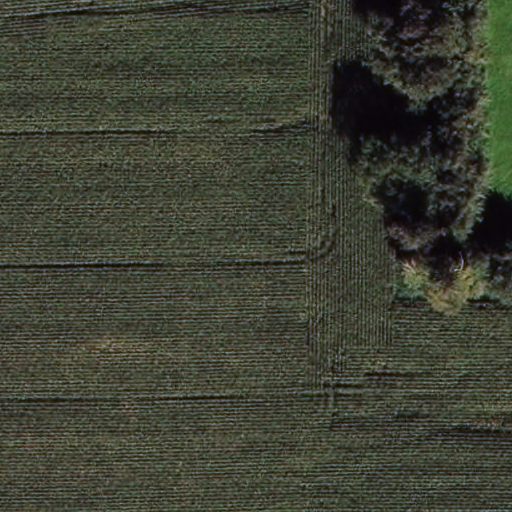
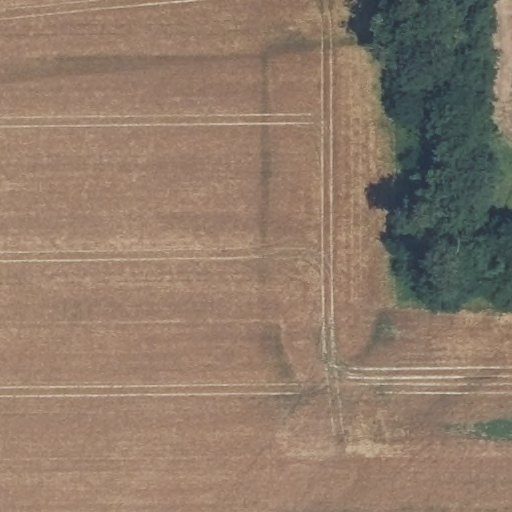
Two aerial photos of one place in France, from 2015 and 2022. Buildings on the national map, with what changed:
[]

